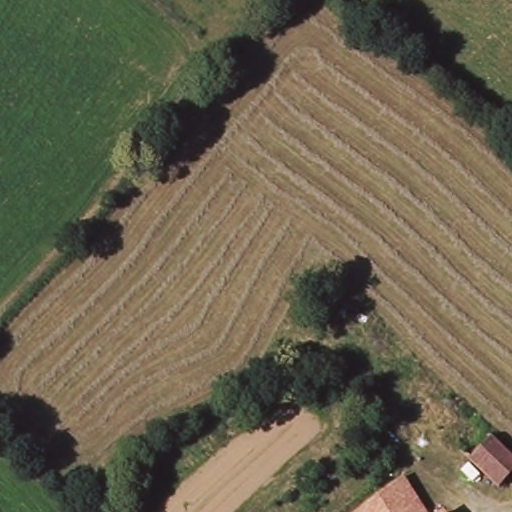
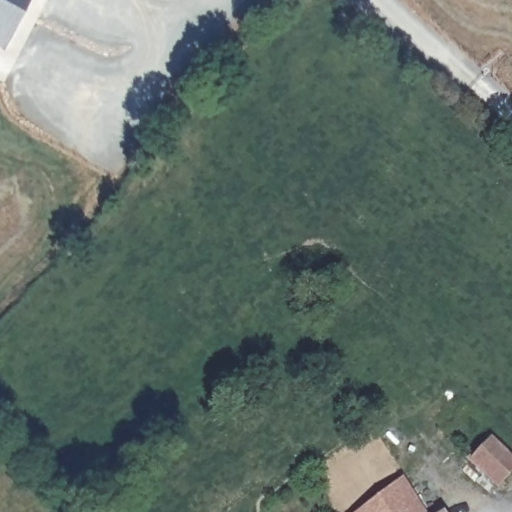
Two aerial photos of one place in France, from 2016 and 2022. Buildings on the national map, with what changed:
new [(5,49),(0,47),(0,0),(30,0),(5,49)]
unchanged [(512,453),(512,476),(498,489),(471,461),(495,435),(512,453)]
unchanged [(377,502),(387,493),(396,481),(401,474),(431,512),(363,512),(363,511),(377,502)]
unchanged [(454,512),(453,512),(453,511),(454,512)]

